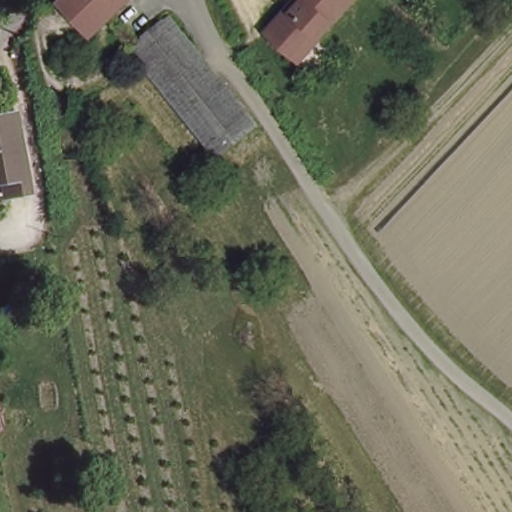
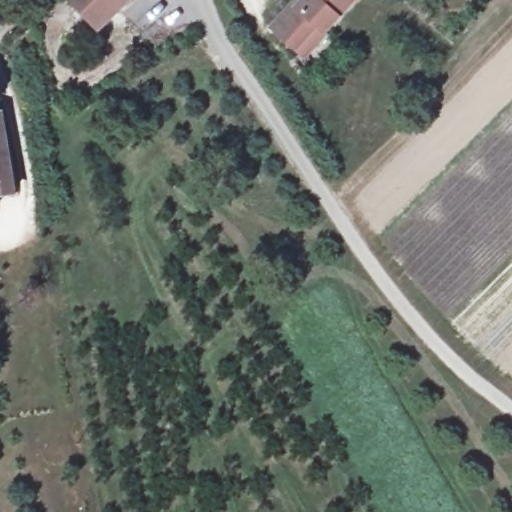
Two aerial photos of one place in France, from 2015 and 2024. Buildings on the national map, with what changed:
unchanged [(101,30),(72,0),(131,0),(101,30)]
unchanged [(296,46),(274,26),(293,3),(299,5),(304,0),(354,0),(326,30),(304,53),(296,46)]
demolished [(221,153),(146,62),(133,46),(171,13),(259,120),(221,153)]
unchanged [(12,193),(0,196),(0,121),(12,193)]

